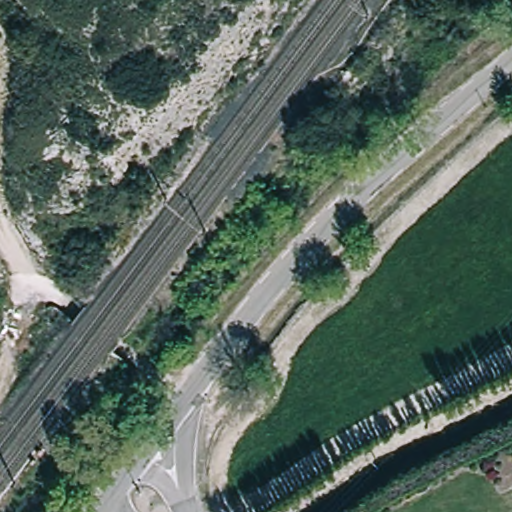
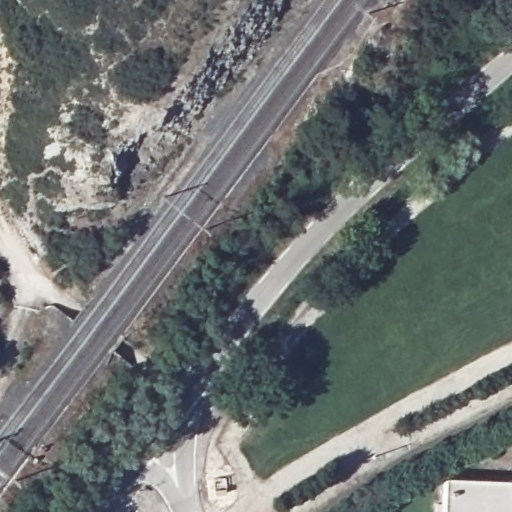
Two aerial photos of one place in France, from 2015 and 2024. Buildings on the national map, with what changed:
new [(512,481),(512,512),(442,512),(444,478),(512,481)]

